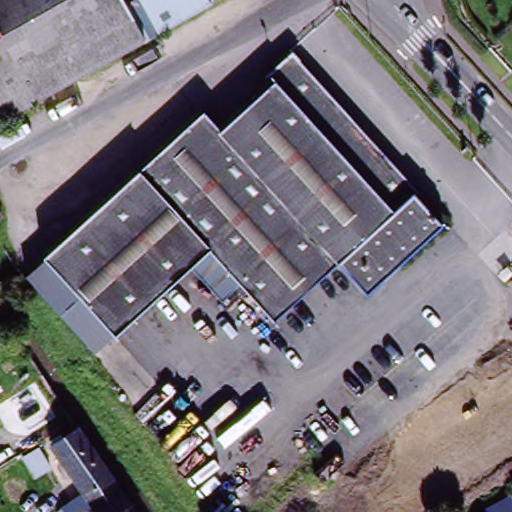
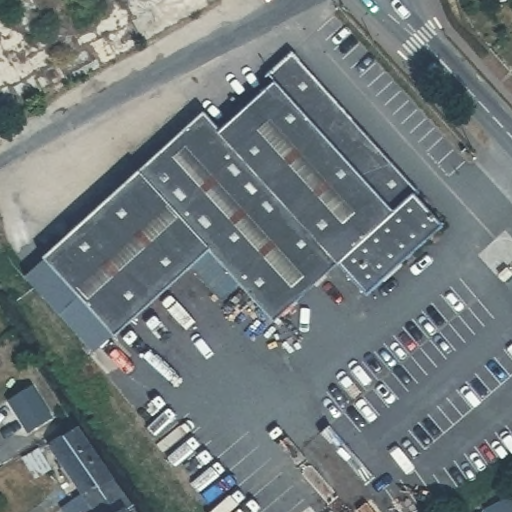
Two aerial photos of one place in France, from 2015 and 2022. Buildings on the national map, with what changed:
demolished [(133,21),(145,41),(0,122),(0,0),(120,0),(133,21)]
unchanged [(41,261),(200,117),(216,134),(266,90),(259,82),(287,57),(415,195),(411,203),(436,228),(362,296),(332,266),(270,322),(236,285),(205,252),(185,269),(186,269),(110,337),(109,335),(41,261)]
unchanged [(6,216),(0,219),(0,201),(6,216)]
unchanged [(236,285),(216,303),(186,269),(185,269),(205,252),(236,285)]
unchanged [(109,335),(88,355),(20,280),(41,261),(109,335)]
new [(32,387),(50,416),(29,429),(11,399),(32,387)]
unchanged [(49,453),(68,438),(69,439),(74,435),(83,449),(94,466),(107,485),(129,512),(90,512),(63,512),(80,499),(49,453)]
unchanged [(45,471),(29,482),(16,462),(32,452),(45,471)]
unchanged [(509,512),(492,512),(506,505),(509,512)]

